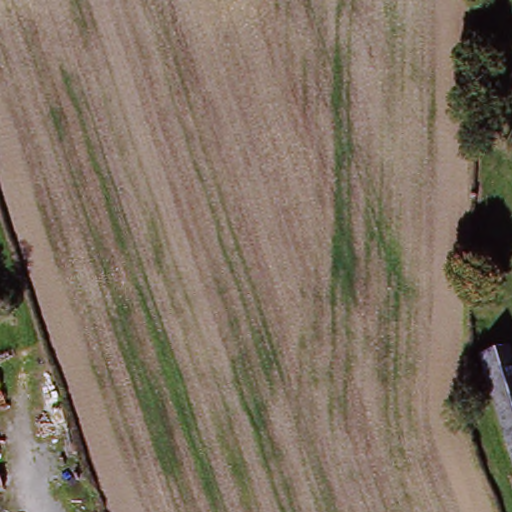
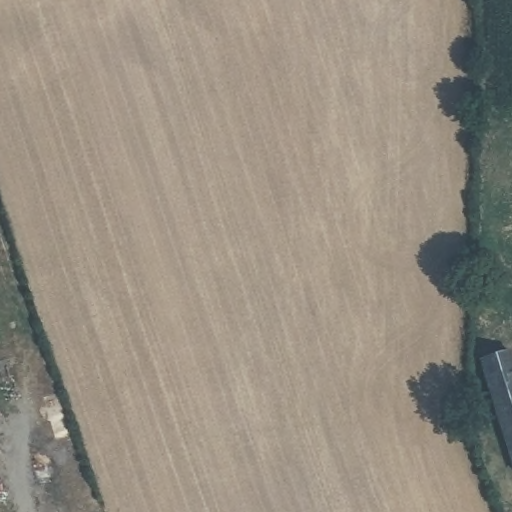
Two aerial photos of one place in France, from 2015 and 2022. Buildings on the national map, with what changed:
unchanged [(505,350),(512,370),(512,469),(510,470),(475,359),(505,350)]

